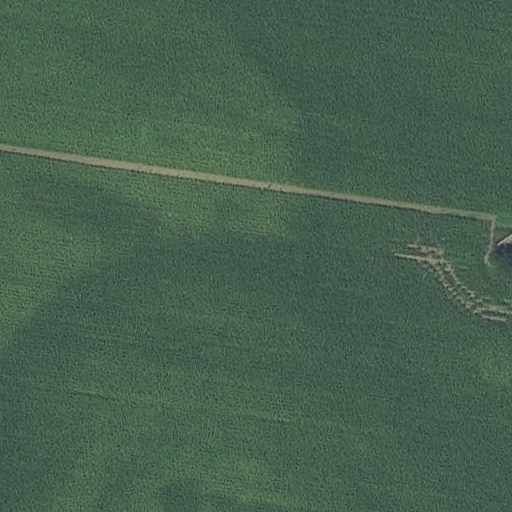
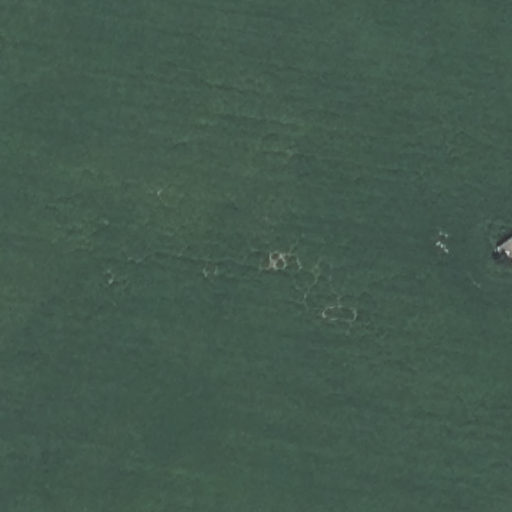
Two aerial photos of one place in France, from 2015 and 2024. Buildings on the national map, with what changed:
unchanged [(511,267),(498,247),(512,234),(512,266),(511,267)]

